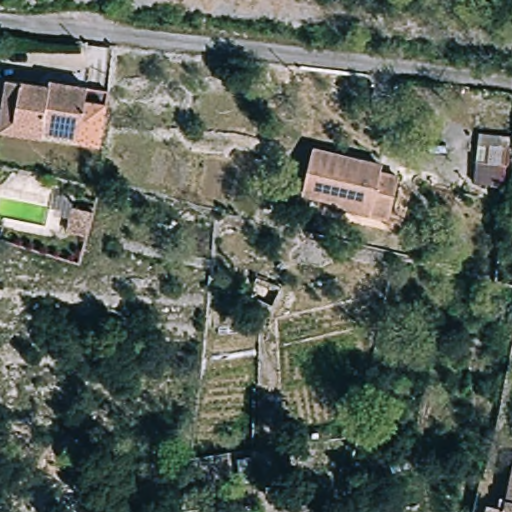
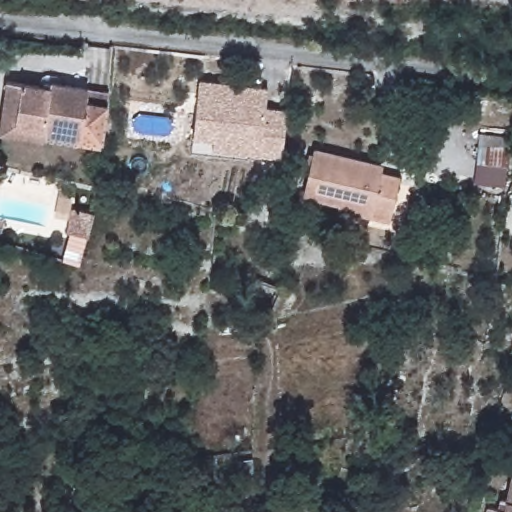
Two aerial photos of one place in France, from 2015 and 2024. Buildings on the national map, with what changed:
new [(267,86),(265,105),(288,109),(280,155),(211,146),(213,137),(191,134),(198,77),(267,86)]
unchanged [(3,137),(8,113),(12,84),(55,90),(55,87),(93,94),(85,140),(48,133),(46,145),(3,137)]
unchanged [(506,187),(475,184),(479,134),(510,137),(506,187)]
unchanged [(343,198),(307,189),(317,147),(381,163),(380,170),(399,175),(389,216),(369,211),(341,204),(343,198)]
unchanged [(69,202),(90,207),(84,232),(63,226),(69,202)]
unchanged [(506,512),(512,483),(512,512),(506,512)]

